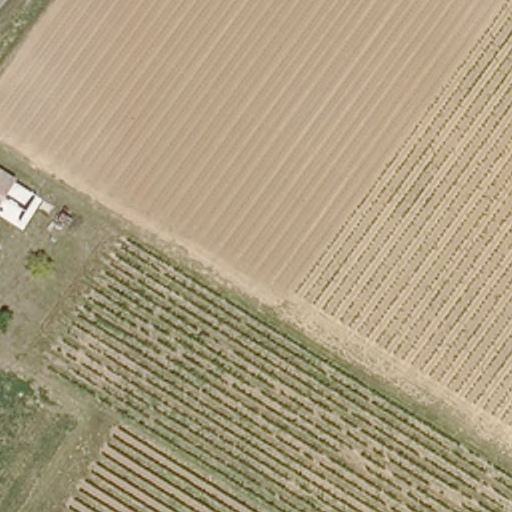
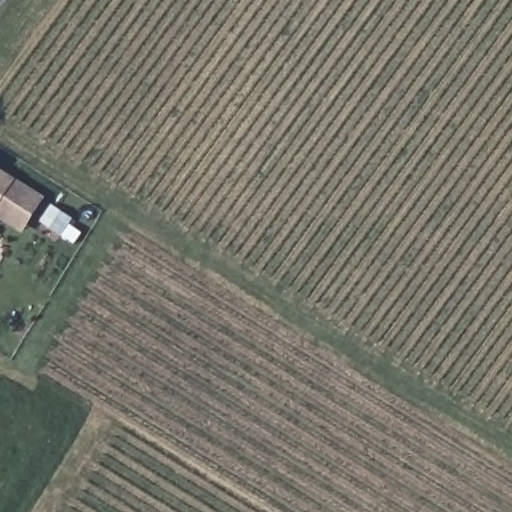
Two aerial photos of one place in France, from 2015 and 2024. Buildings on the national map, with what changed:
unchanged [(0,165),(15,174),(0,197),(0,165)]
new [(47,197),(25,228),(0,208),(0,197),(15,174),(47,197)]

